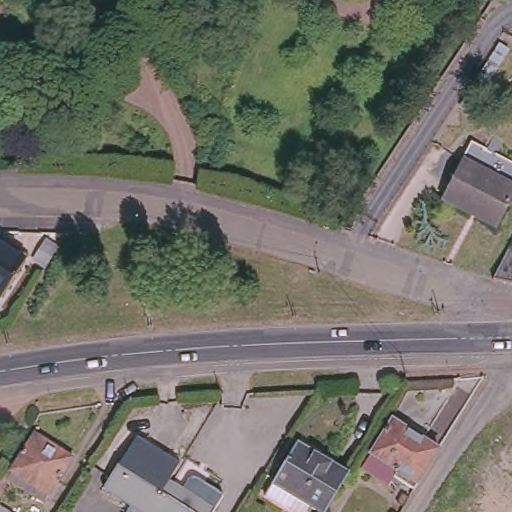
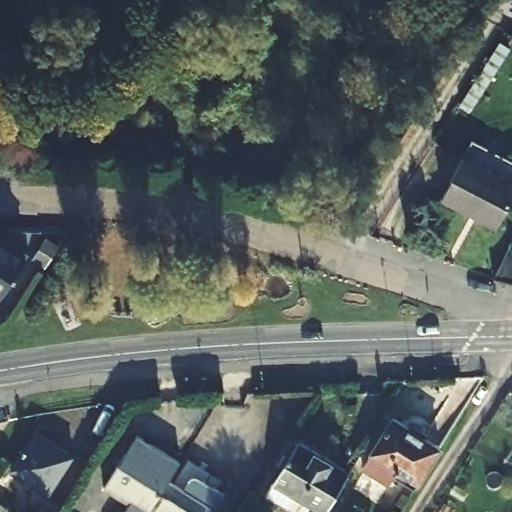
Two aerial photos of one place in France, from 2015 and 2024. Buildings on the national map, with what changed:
unchanged [(464,211),(433,195),(455,156),(510,184),(492,219),(488,224),(464,211)]
unchanged [(30,255),(2,297),(0,296),(0,237),(30,255)]
unchanged [(492,280),(491,280),(507,250),(512,251),(512,284),(497,281),(492,280)]
unchanged [(400,482),(393,492),(360,470),(390,420),(437,449),(435,452),(413,490),(400,482)]
unchanged [(2,466),(7,469),(32,431),(70,456),(42,498),(35,495),(6,477),(0,487),(0,470),(2,466)]
unchanged [(324,509),(311,501),(305,512),(298,512),(265,491),(297,439),(347,469),(324,509)]
unchanged [(131,512),(127,509),(132,499),(115,488),(112,492),(102,486),(127,448),(170,476),(147,512),(131,512)]
unchanged [(188,476),(195,481),(198,479),(202,477),(204,478),(223,492),(211,512),(147,512),(170,476),(182,484),(188,476)]
unchanged [(8,512),(0,512),(0,507),(8,512)]

